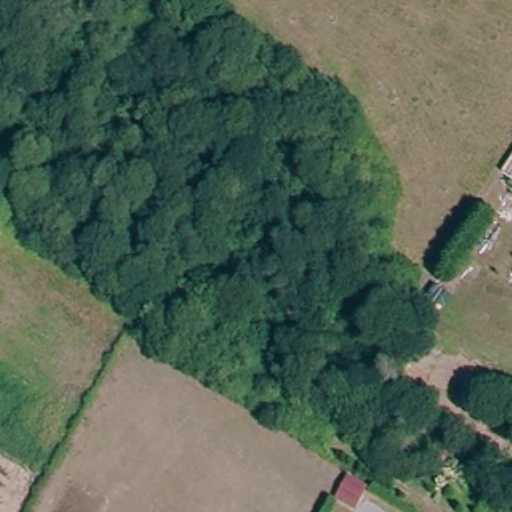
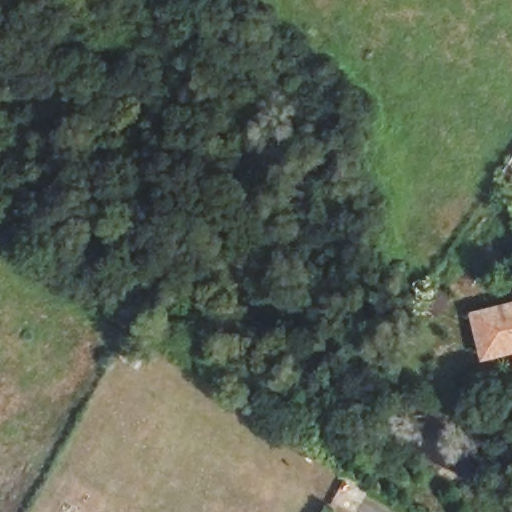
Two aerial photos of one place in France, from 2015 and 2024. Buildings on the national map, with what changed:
new [(512,352),(482,360),(470,311),(512,301),(512,352)]
unchanged [(368,486),(356,510),(335,499),(348,475),(368,486)]

